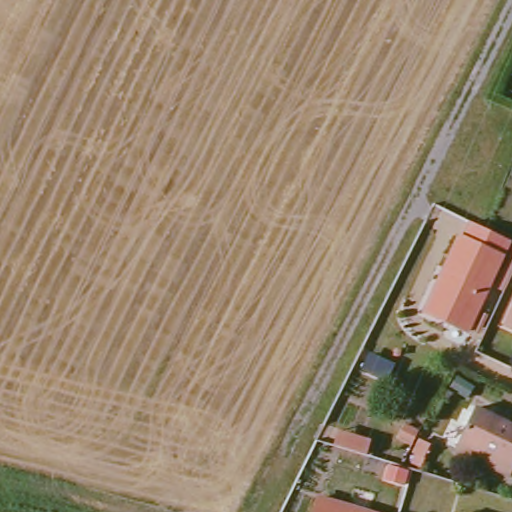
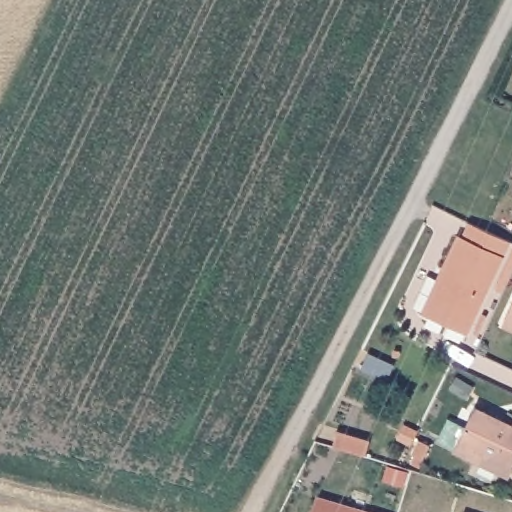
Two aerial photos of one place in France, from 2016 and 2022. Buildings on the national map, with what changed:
unchanged [(444,266),(459,231),(467,234),(473,219),(512,237),(471,329),(432,312),(425,309),(444,266)]
unchanged [(502,323),(512,301),(512,327),(502,323)]
unchanged [(453,446),(472,407),(512,424),(512,464),(512,465),(508,472),(473,456),(453,446)]
unchanged [(338,433),(371,443),(367,458),(359,455),(334,447),(338,433)]
unchanged [(376,512),(312,512),(318,495),(376,512)]

